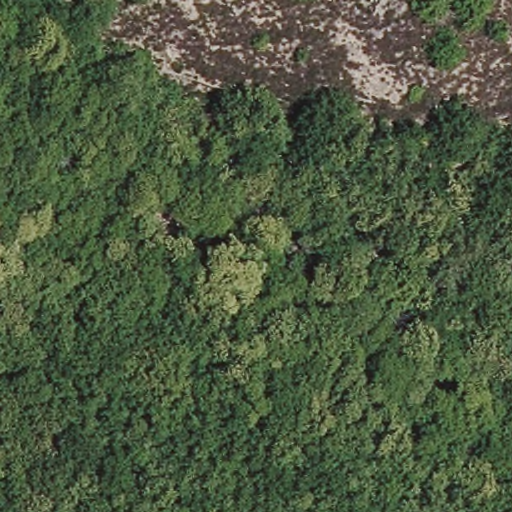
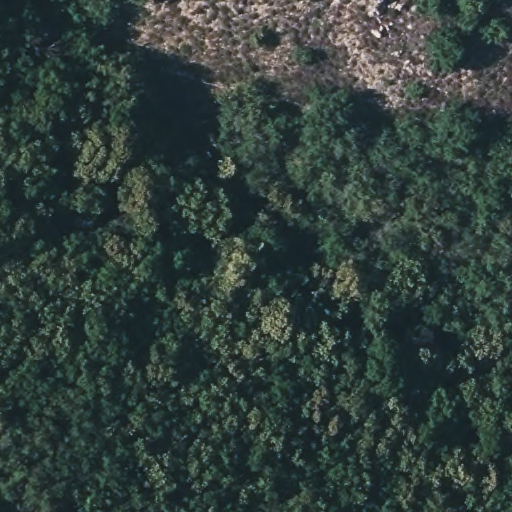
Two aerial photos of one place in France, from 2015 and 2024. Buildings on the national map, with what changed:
[]

